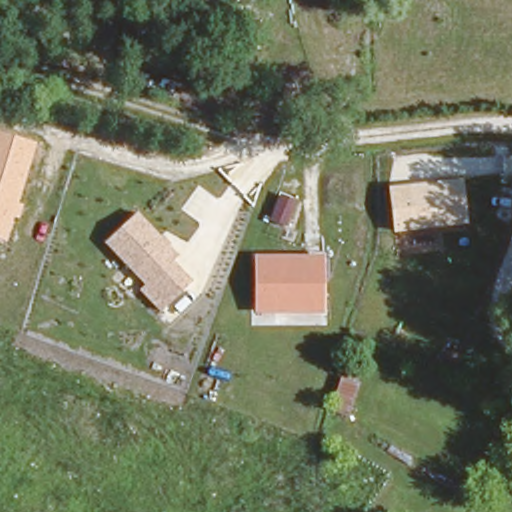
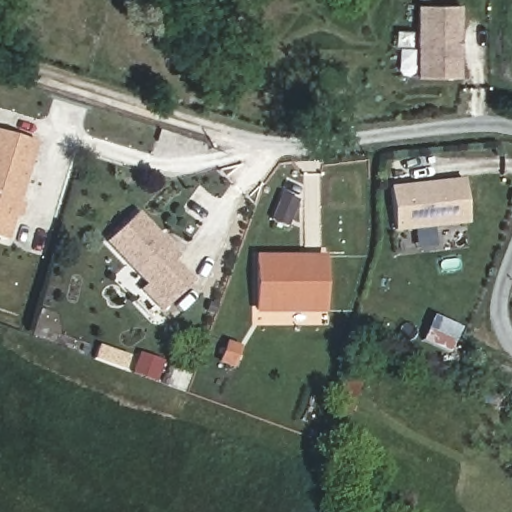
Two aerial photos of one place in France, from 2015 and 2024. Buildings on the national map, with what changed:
new [(459,4),(459,78),(415,76),(415,5),(459,4)]
unchanged [(0,238),(0,131),(37,141),(7,240),(0,238)]
unchanged [(395,232),(389,184),(462,178),(468,224),(395,232)]
unchanged [(160,313),(139,289),(144,284),(105,243),(138,212),(178,254),(172,259),(192,280),(160,313)]
unchanged [(255,314),(256,254),(324,254),(325,313),(255,314)]

